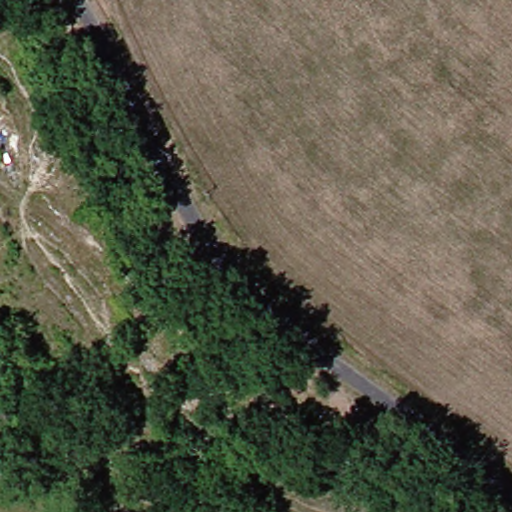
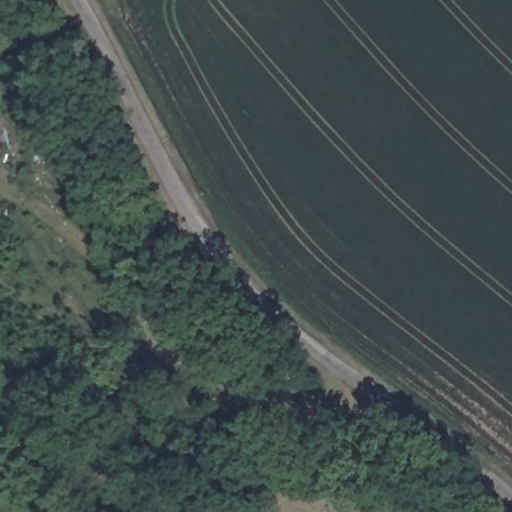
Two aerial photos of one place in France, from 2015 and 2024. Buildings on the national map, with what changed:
[]

